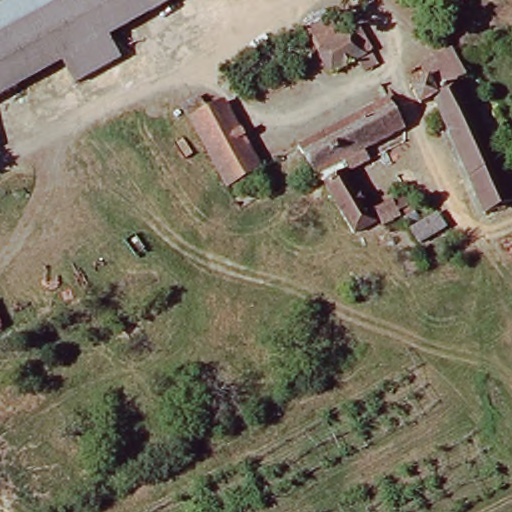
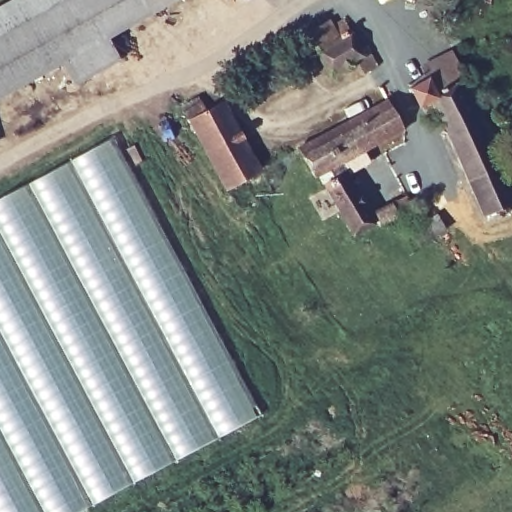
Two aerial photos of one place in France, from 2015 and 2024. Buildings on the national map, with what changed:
unchanged [(18,0),(73,0),(0,40),(0,10),(18,0)]
unchanged [(73,0),(183,0),(110,40),(121,60),(75,87),(62,63),(0,98),(0,40),(73,0)]
unchanged [(333,22),(337,29),(351,21),(370,63),(333,80),(311,32),(333,22)]
unchanged [(420,70),(445,58),(453,56),(465,78),(458,81),(481,127),(472,132),(500,190),(473,203),(449,151),(430,109),(414,115),(403,89),(425,80),(420,70)]
unchanged [(204,114),(222,104),(262,174),(228,193),(181,106),(195,99),(204,114)]
unchanged [(366,150),(371,160),(349,172),(373,226),(353,237),(324,181),(317,185),(298,150),(386,103),(401,131),(366,150)]
unchanged [(484,223),(473,203),(500,190),(472,132),(481,127),(512,194),(512,208),(484,223)]
new [(261,413),(77,512),(0,512),(0,198),(113,138),(261,413)]
unchanged [(415,207),(402,213),(404,221),(383,229),(374,208),(409,193),(415,207)]

